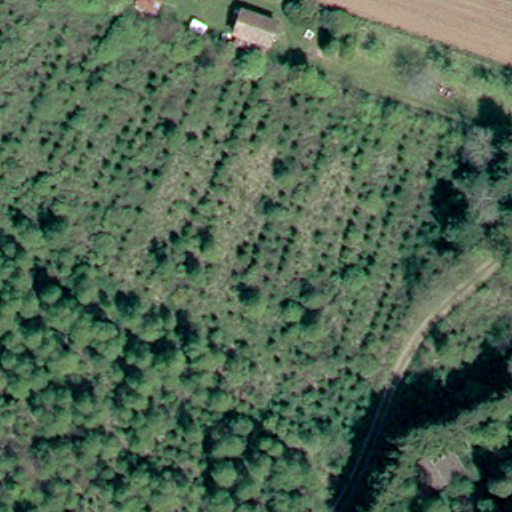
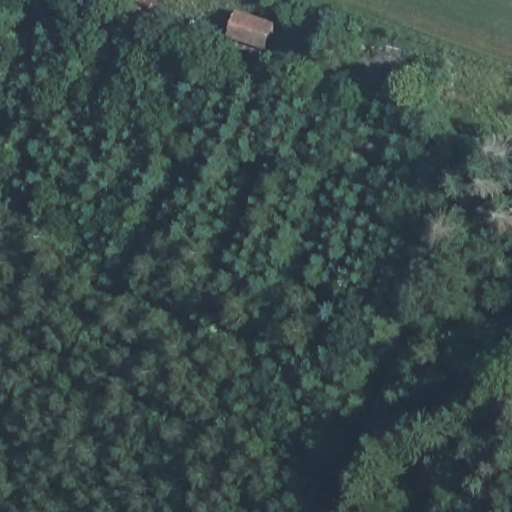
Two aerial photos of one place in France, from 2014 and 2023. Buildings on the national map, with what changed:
unchanged [(129,4),(131,0),(162,0),(157,12),(129,4)]
unchanged [(223,38),(229,10),(276,22),(262,49),(223,38)]

